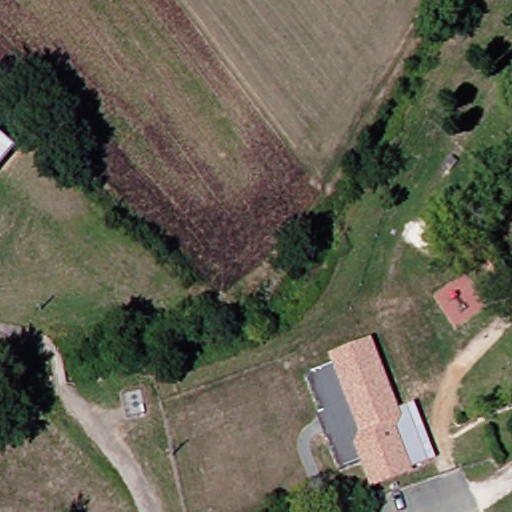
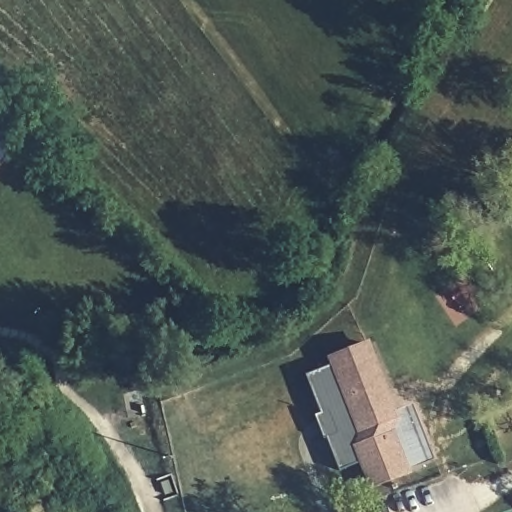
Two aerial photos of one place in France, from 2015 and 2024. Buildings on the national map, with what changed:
unchanged [(16,154),(0,171),(0,141),(16,154)]
unchanged [(330,436),(325,439),(316,415),(322,413),(307,375),(332,366),(328,356),(371,341),(402,418),(397,428),(412,471),(369,488),(358,461),(341,468),(330,436)]

